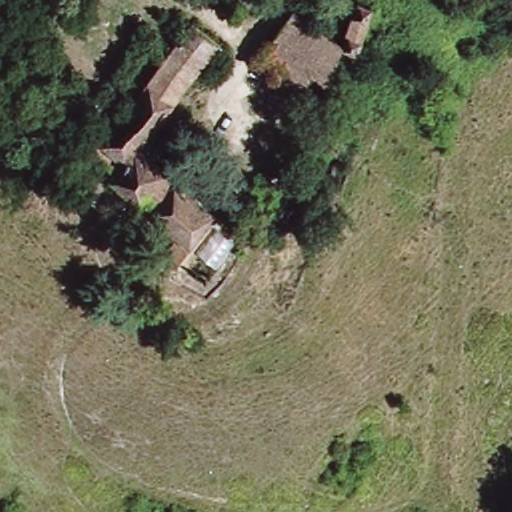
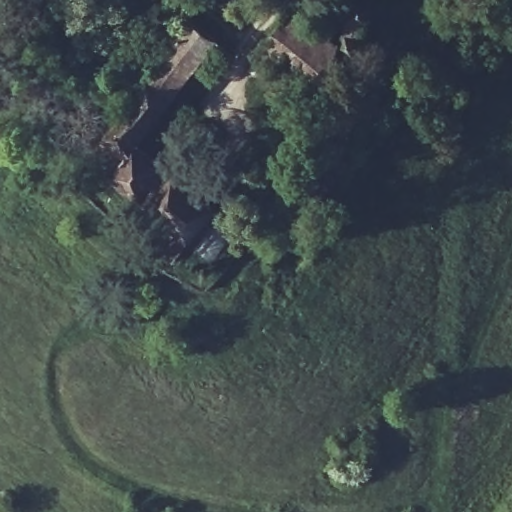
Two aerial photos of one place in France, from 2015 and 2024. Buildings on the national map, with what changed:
unchanged [(298,86),(254,57),(288,7),(340,42),(354,0),(366,0),(371,2),(355,50),(340,45),(321,100),(298,86)]
unchanged [(101,132),(158,60),(149,52),(154,47),(161,54),(194,14),(217,34),(135,136),(124,150),(101,132)]
unchanged [(185,253),(165,239),(176,222),(110,165),(124,150),(135,136),(213,201),(191,235),(196,240),(185,253)]
unchanged [(191,235),(213,201),(243,225),(217,256),(196,240),(191,235)]

